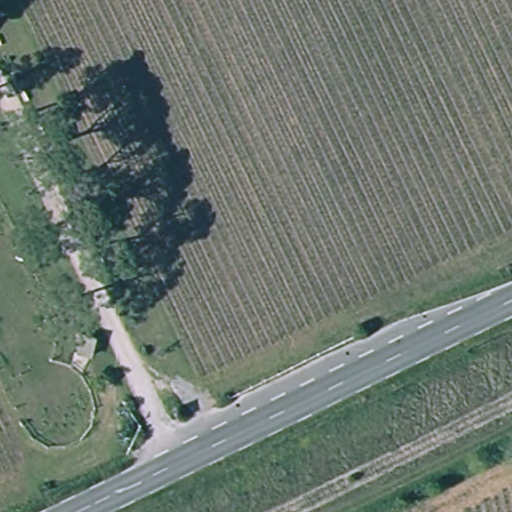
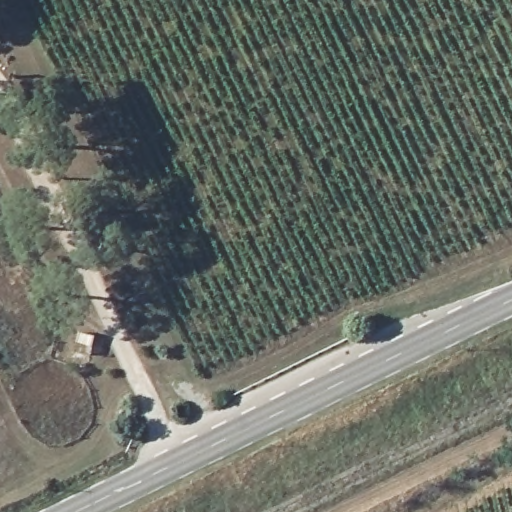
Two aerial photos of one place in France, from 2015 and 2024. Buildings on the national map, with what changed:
unchanged [(92,366),(72,363),(78,332),(100,337),(92,366)]

